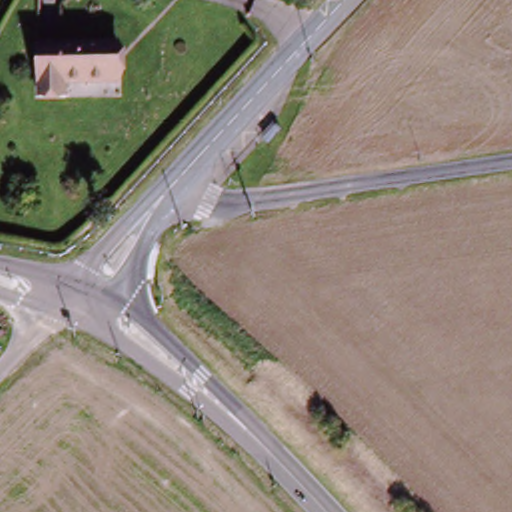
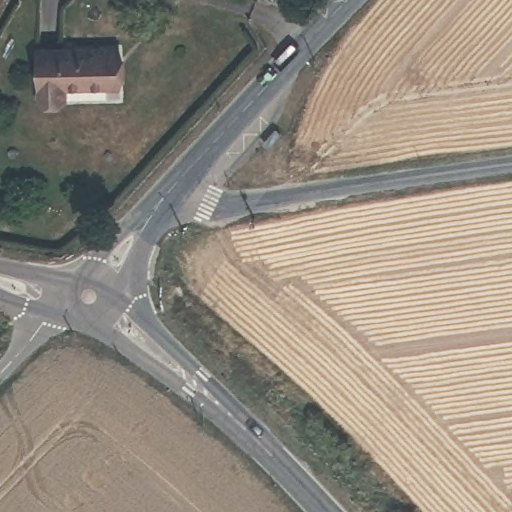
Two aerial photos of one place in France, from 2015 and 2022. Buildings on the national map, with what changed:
unchanged [(42,50),(90,50),(102,51),(103,79),(92,80),(72,80),(72,91),(60,93),(42,93),(42,83),(42,50)]

